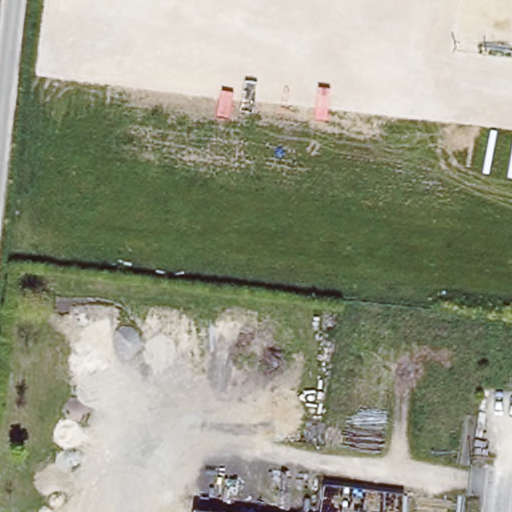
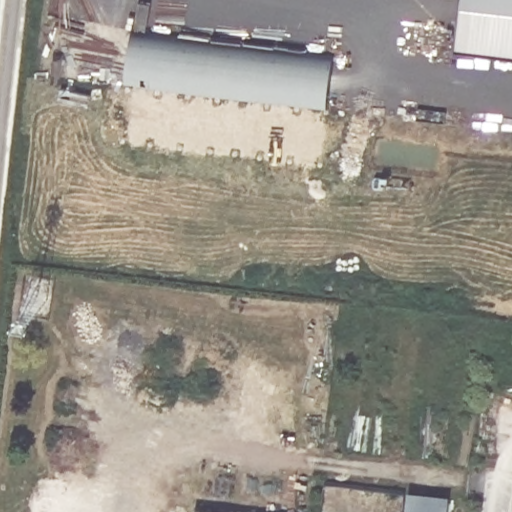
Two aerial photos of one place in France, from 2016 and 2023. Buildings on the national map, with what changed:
new [(461,0),(512,0),(512,55),(456,48),(461,0)]
new [(328,107),(123,83),(130,31),(334,56),(328,107)]
new [(446,498),(445,512),(400,512),(405,494),(446,498)]
unchanged [(204,512),(205,503),(283,512),(204,512)]

